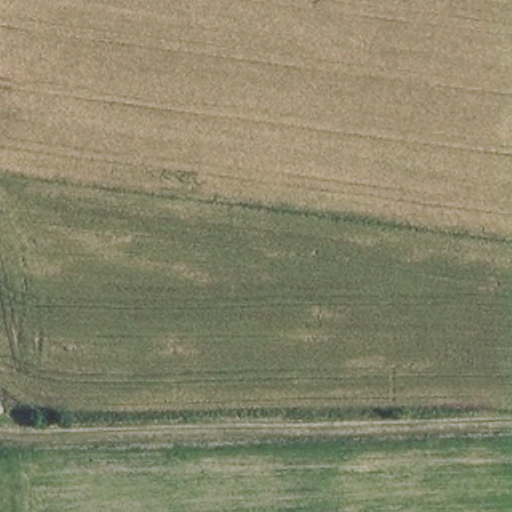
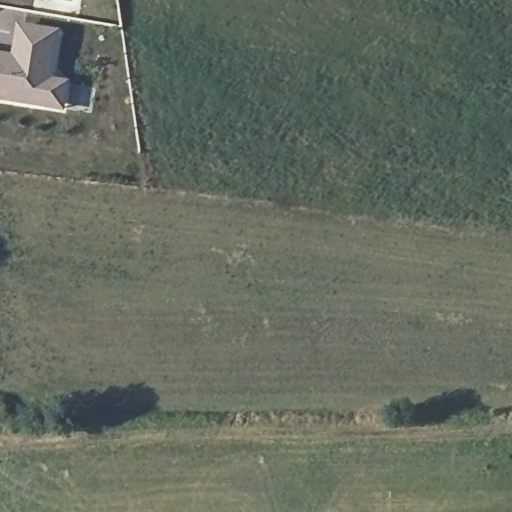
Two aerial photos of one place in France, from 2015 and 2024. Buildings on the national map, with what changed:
new [(9,52),(13,21),(57,28),(52,79),(67,81),(63,110),(0,101),(0,51),(9,52)]

